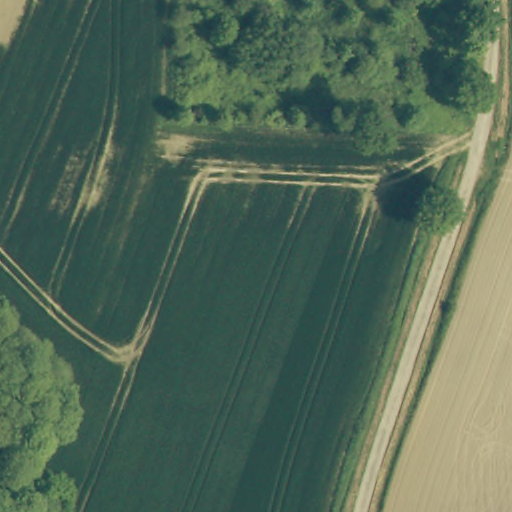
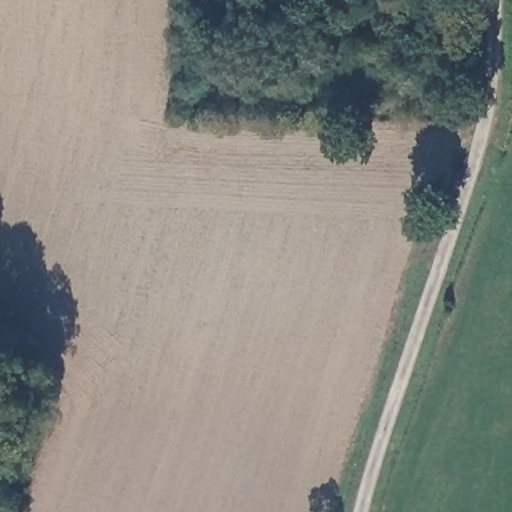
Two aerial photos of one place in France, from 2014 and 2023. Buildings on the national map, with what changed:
[]

